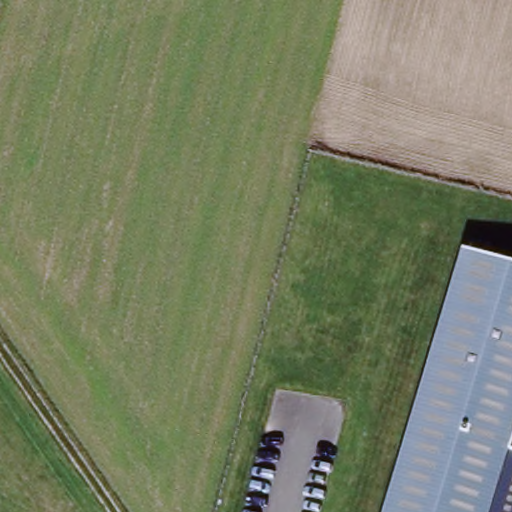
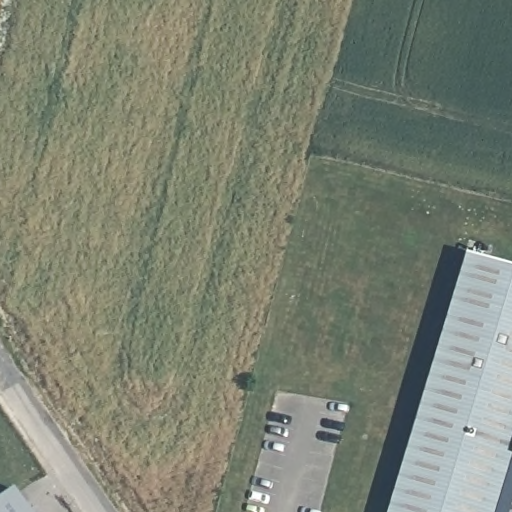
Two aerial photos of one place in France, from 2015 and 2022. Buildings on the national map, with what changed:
unchanged [(512,266),(512,512),(383,512),(465,252),(512,266)]
new [(29,512),(0,512),(0,498),(13,489),(29,512)]

